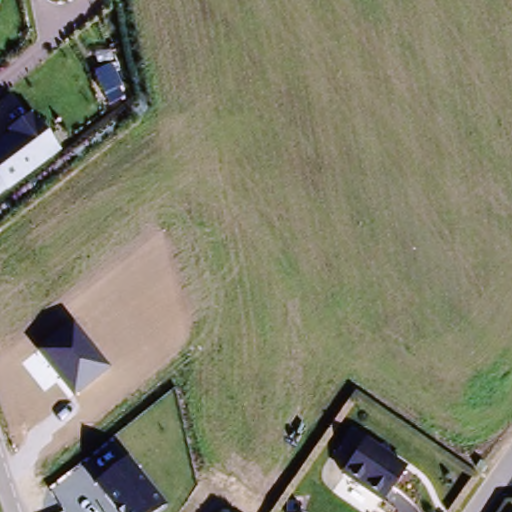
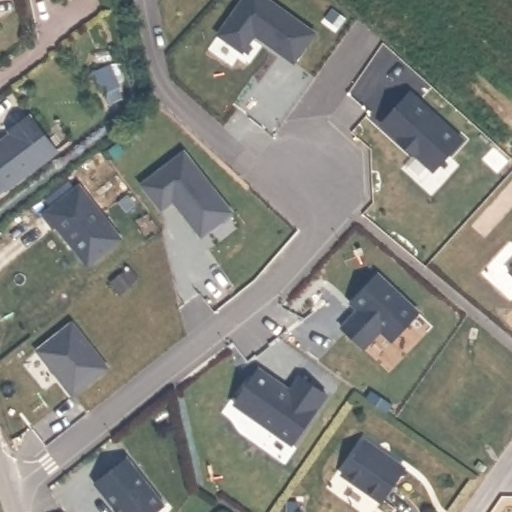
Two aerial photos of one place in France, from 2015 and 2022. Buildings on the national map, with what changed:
new [(242,52),(219,35),(244,0),(267,0),(315,34),(294,63),(259,37),(255,35),(242,52)]
new [(109,65),(121,97),(105,104),(93,72),(109,65)]
new [(412,93),(464,141),(435,173),(417,156),(416,157),(401,143),(402,143),(383,125),(412,93)]
unchanged [(59,151),(0,196),(0,141),(32,116),(59,151)]
new [(183,151),(231,212),(200,236),(171,200),(159,209),(140,184),(183,151)]
new [(78,183),(120,236),(92,259),(84,258),(56,222),(53,225),(42,212),(78,183)]
new [(512,271),(511,270),(512,268),(512,271)]
new [(348,302),(375,273),(416,312),(389,341),(377,329),(371,334),(373,335),(361,348),(339,327),(351,315),(356,309),(348,302)]
unchanged [(108,369),(74,398),(38,351),(70,324),(108,369)]
new [(261,366),(292,389),(302,375),(328,395),(292,443),(253,414),(235,400),(238,396),(261,366)]
unchanged [(407,471),(384,503),(343,473),(366,441),(407,471)]
unchanged [(119,512),(95,485),(125,458),(165,504),(156,512),(119,512)]

